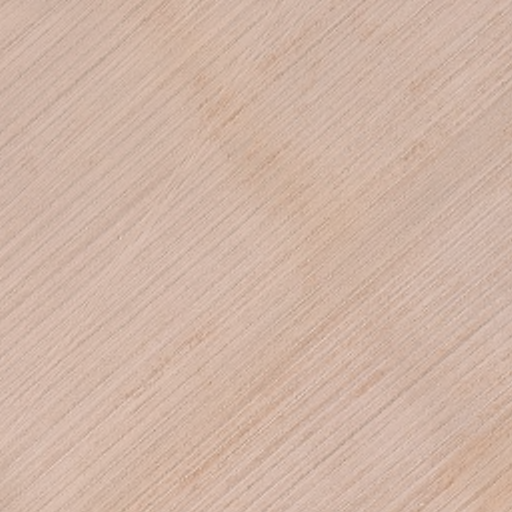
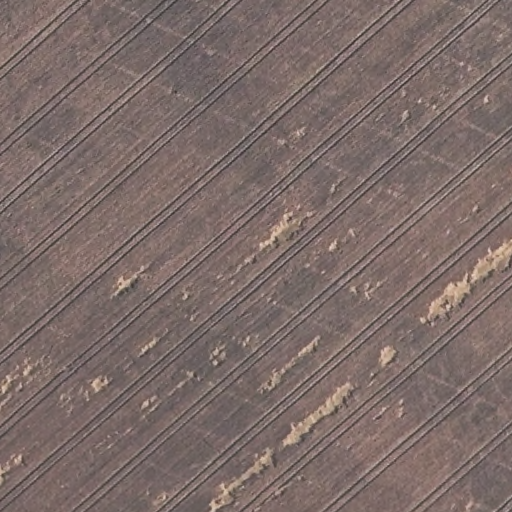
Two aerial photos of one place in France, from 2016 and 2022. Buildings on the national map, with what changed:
[]

